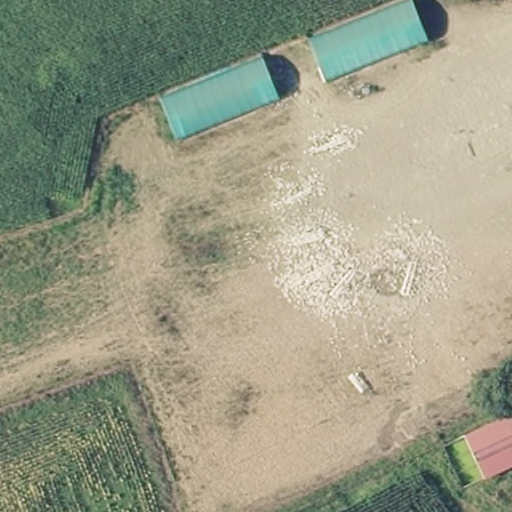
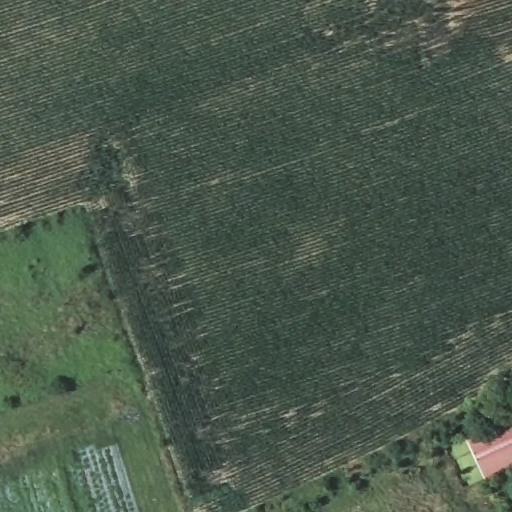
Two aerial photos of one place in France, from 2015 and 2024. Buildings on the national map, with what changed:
demolished [(328,87),(312,46),(412,4),(430,44),(328,87)]
demolished [(279,102),(179,139),(164,104),(266,65),(279,102)]
unchanged [(512,470),(483,483),(462,438),(512,415),(512,470)]

